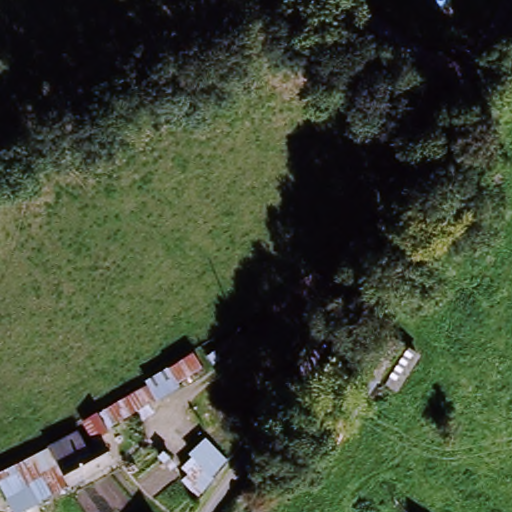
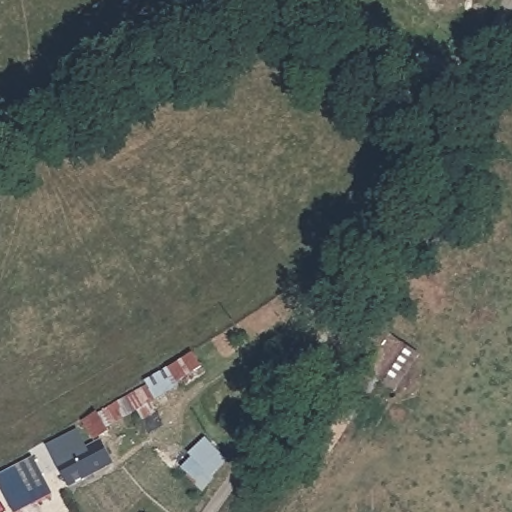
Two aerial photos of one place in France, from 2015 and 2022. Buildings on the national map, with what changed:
unchanged [(374,383),(388,355),(413,365),(400,397),(374,383)]
unchanged [(0,492),(0,478),(33,461),(42,479),(54,475),(47,455),(83,435),(78,427),(189,357),(205,377),(177,395),(101,446),(113,466),(36,512),(12,512),(0,492)]

